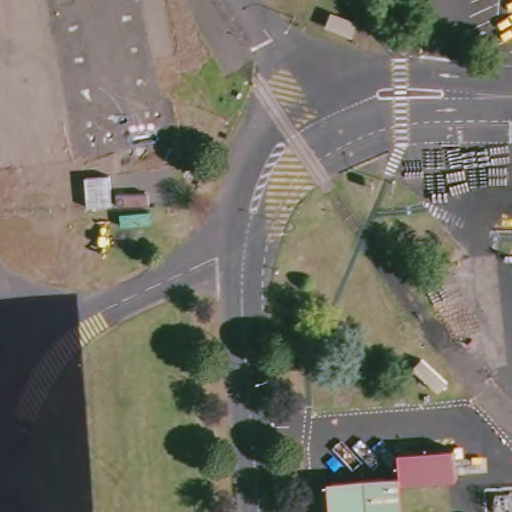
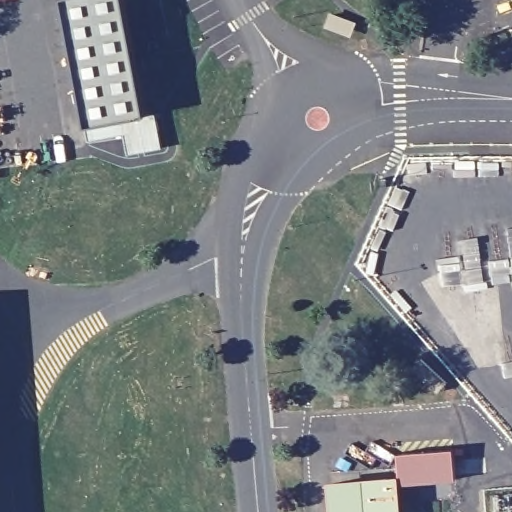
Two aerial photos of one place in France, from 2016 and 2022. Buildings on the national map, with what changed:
new [(126,0),(147,114),(156,113),(163,146),(128,154),(124,132),(91,140),(88,126),(64,0),(126,0)]
unchanged [(451,448),(454,480),(408,483),(405,452),(451,448)]
unchanged [(328,481),(393,476),(396,512),(330,512),(328,481)]

